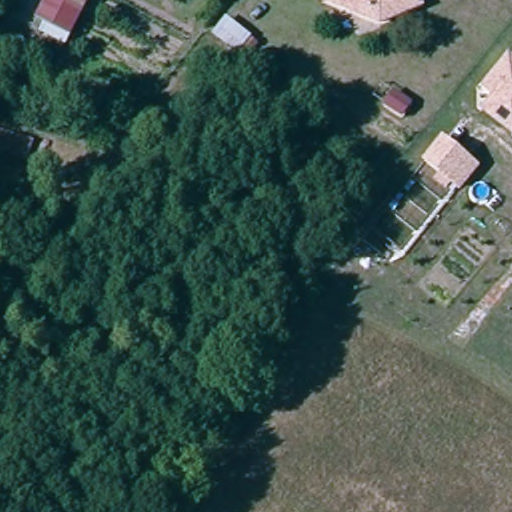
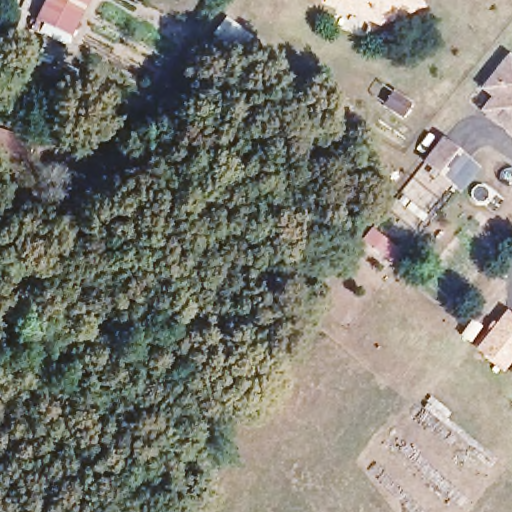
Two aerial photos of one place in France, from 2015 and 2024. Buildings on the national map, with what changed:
unchanged [(37,29),(49,0),(90,0),(71,44),(37,29)]
unchanged [(377,30),(325,10),(326,6),(328,0),(412,0),(418,12),(377,30)]
unchanged [(211,36),(229,14),(257,40),(237,60),(211,36)]
unchanged [(512,60),(512,61),(512,110),(487,91),(512,60)]
new [(412,102),(401,117),(382,103),(393,90),(412,102)]
unchanged [(480,109),(492,94),(512,110),(512,137),(480,109)]
demolished [(409,110),(401,122),(385,111),(392,99),(409,110)]
unchanged [(0,160),(0,130),(32,139),(25,167),(0,160)]
unchanged [(441,137),(478,167),(458,192),(422,161),(441,137)]
new [(507,310),(512,315),(512,361),(502,373),(474,350),(507,310)]

